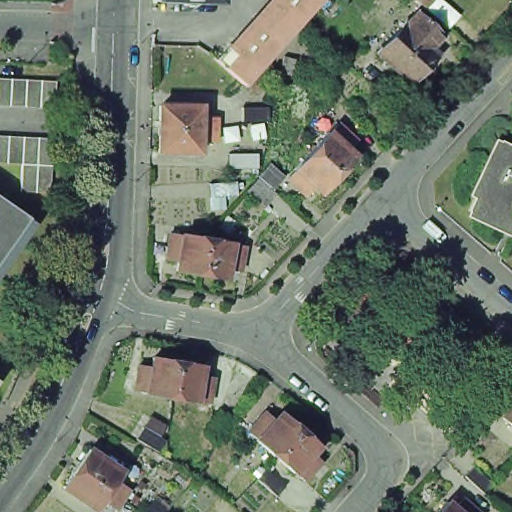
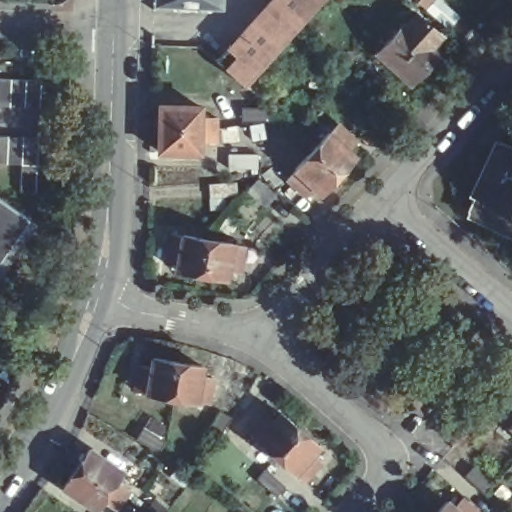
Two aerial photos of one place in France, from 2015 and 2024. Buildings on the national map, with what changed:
unchanged [(219,2),(153,0),(219,0),(219,2)]
unchanged [(246,36),(256,25),(266,12),(276,1),(275,0),(321,0),(301,23),(291,34),(283,42),(280,46),(269,57),(259,69),(244,85),(216,60),(231,43),(236,47),(246,36)]
unchanged [(416,0),(435,0),(439,4),(430,13),(422,5),(416,0)]
unchanged [(409,28),(410,30),(422,17),(447,40),(436,53),(443,59),(416,89),(382,57),(409,28)]
unchanged [(24,106),(9,105),(0,105),(0,77),(11,78),(25,79),(40,80),(55,80),(54,108),(39,107),(24,106)]
unchanged [(160,105),(201,106),(201,117),(216,117),(216,130),(159,128),(160,105)]
unchanged [(268,106),(269,120),(242,120),(242,106),(268,106)]
unchanged [(159,128),(216,130),(216,141),(200,140),(199,151),(159,150),(159,128)]
unchanged [(329,141),(329,142),(338,133),(356,150),(348,159),(356,166),(339,185),(311,160),(329,141)]
unchanged [(21,164),(6,163),(0,163),(0,135),(8,135),(23,136),(38,136),(53,137),(51,165),(50,192),(35,191),(20,191),(21,164)]
unchanged [(468,215),(500,145),(512,151),(512,236),(468,215)]
unchanged [(228,156),(256,155),(256,171),(228,171),(228,156)]
unchanged [(296,179),(295,178),(311,160),(339,185),(321,203),(314,196),(306,205),(288,189),(296,179)]
unchanged [(208,183),(236,181),(237,195),(210,197),(208,183)]
unchanged [(0,264),(0,194),(33,217),(0,264)]
unchanged [(181,275),(183,265),(171,262),(175,239),(188,240),(188,239),(213,244),(206,279),(181,275)]
unchanged [(213,244),(237,247),(236,249),(249,251),(245,275),(233,273),(231,283),(206,279),(213,244)]
unchanged [(152,398),(152,396),(140,395),(144,370),(156,372),(158,362),(183,366),(176,402),(152,398)]
unchanged [(208,370),(206,380),(218,382),(214,407),(201,405),(201,406),(176,402),(183,366),(208,370)]
unchanged [(219,409),(231,416),(218,438),(206,431),(219,409)]
unchanged [(265,412),(274,420),(281,412),(300,429),(276,456),(257,440),(258,439),(248,430),(265,412)]
unchanged [(512,417),(512,426),(508,422),(512,417)]
unchanged [(143,426),(166,440),(159,451),(136,438),(143,426)]
unchanged [(319,445),(312,453),(321,461),(304,480),(296,472),(294,472),(276,456),(300,429),(319,445)]
unchanged [(88,448),(123,471),(116,480),(129,490),(123,499),(76,467),(88,448)]
unchanged [(474,465),(493,483),(484,493),(464,475),(474,465)]
unchanged [(76,467),(123,499),(116,509),(103,500),(96,509),(63,486),(76,467)]
unchanged [(266,468),(286,485),(277,495),(257,478),(266,468)]
unchanged [(459,507),(467,498),(483,512),(441,512),(451,500),(459,507)]

